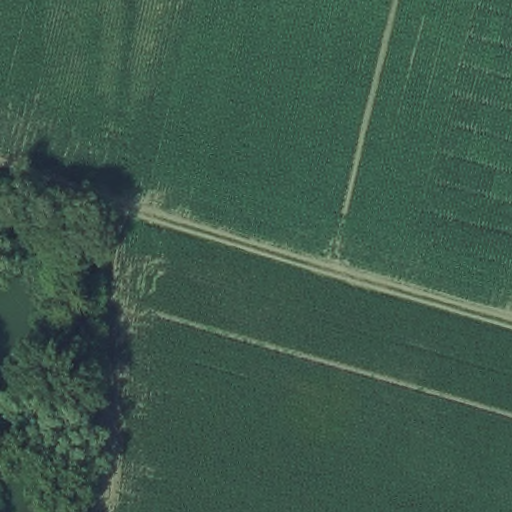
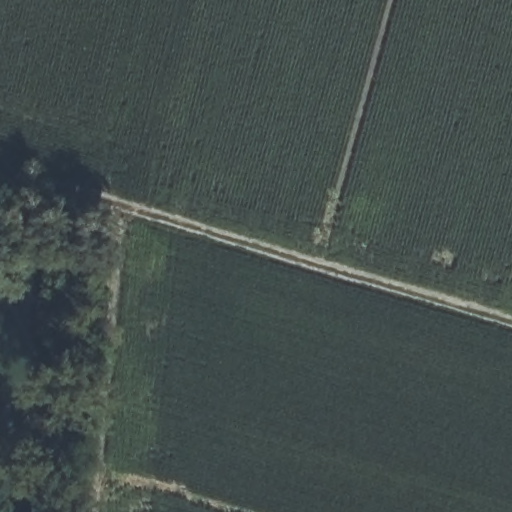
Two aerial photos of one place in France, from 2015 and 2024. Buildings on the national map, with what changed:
unchanged [(60,348),(87,357),(74,410),(42,403),(60,348)]

